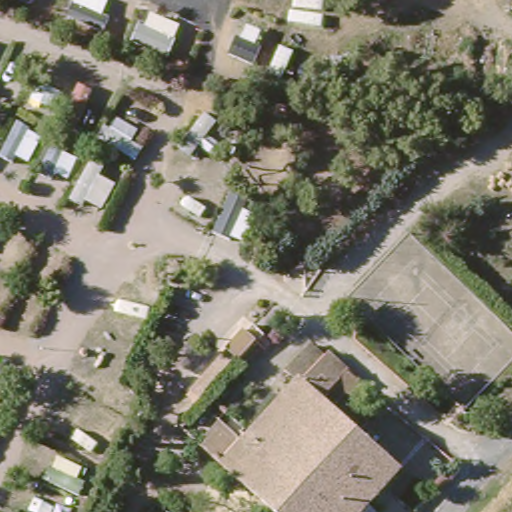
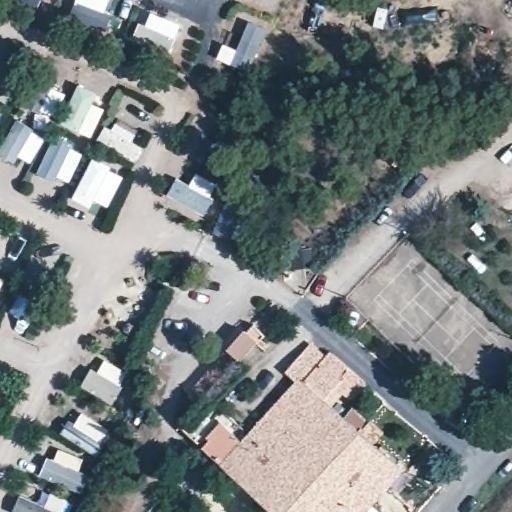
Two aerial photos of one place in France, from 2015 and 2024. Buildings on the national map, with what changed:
unchanged [(206,381),(256,328),(266,335),(216,394),(206,381)]
unchanged [(362,512),(279,512),(236,476),(224,466),(257,431),(301,379),(309,385),(336,356),(361,379),(354,387),(346,380),(327,402),(402,467),(362,512)]
unchanged [(217,426),(233,409),(257,431),(224,466),(209,449),(223,435),(217,426)]

